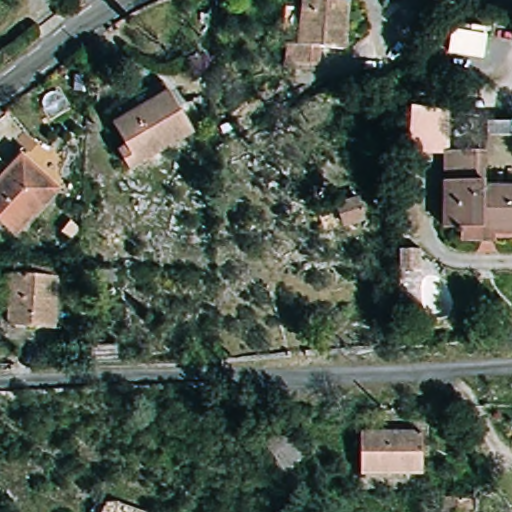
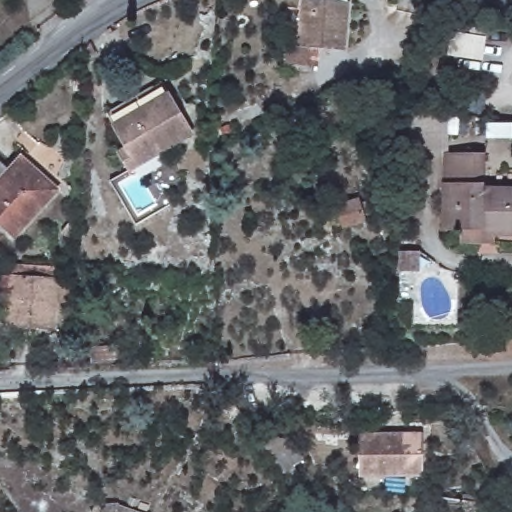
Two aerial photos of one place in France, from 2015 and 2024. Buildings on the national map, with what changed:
unchanged [(352,4),(348,57),(326,55),(325,69),(298,67),(299,51),(306,52),(313,1),(352,4)]
unchanged [(484,62),(447,55),(452,33),(454,26),(489,31),(487,39),(484,62)]
unchanged [(198,140),(138,172),(125,149),(136,144),(120,115),(171,88),(198,140)]
unchanged [(412,153),(412,110),(451,112),(448,155),(412,153)]
unchanged [(486,116),(512,119),(512,127),(512,128),(511,141),(485,140),(486,116)]
unchanged [(488,153),(485,183),(512,186),(512,237),(465,233),(466,222),(446,220),(453,150),(488,153)]
unchanged [(0,184),(24,156),(60,188),(18,235),(0,218),(0,184)]
unchanged [(367,218),(346,227),(339,207),(360,198),(367,218)]
unchanged [(14,269),(60,271),(58,322),(13,320),(14,269)]
unchanged [(89,345),(111,344),(113,363),(90,364),(89,345)]
unchanged [(366,432),(425,435),(423,475),(364,472),(366,432)]
unchanged [(271,451),(286,443),(295,444),(311,460),(290,476),(271,451)]
unchanged [(476,504),(476,512),(450,512),(451,501),(476,504)]
unchanged [(121,509),(129,512),(96,512),(96,508),(121,509)]

